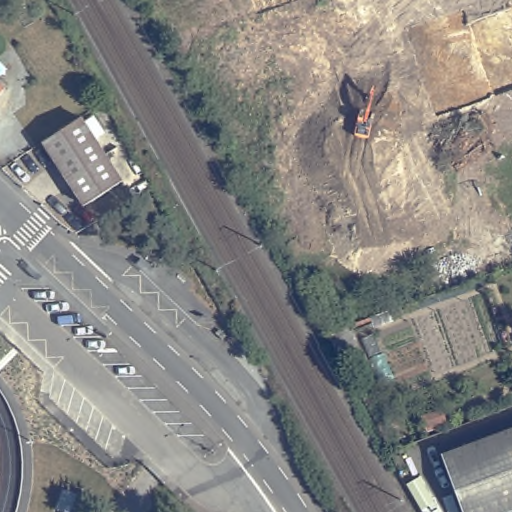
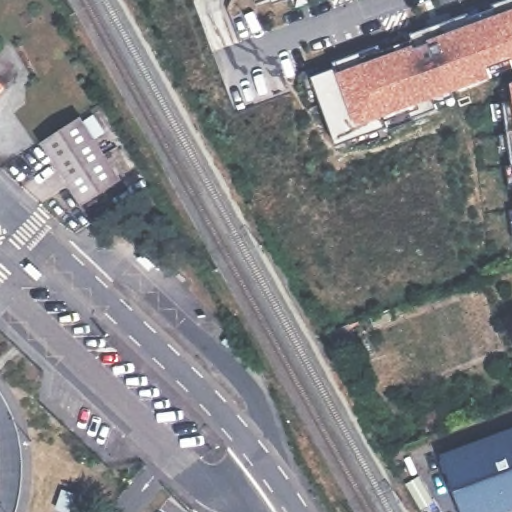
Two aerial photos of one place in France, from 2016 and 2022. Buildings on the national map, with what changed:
new [(258,2),(258,0),(265,0),(258,2)]
new [(276,2),(275,0),(282,0),(276,2)]
new [(321,95),(311,99),(302,72),(318,67),(318,72),(337,65),(334,60),(506,0),(512,0),(512,71),(496,77),(453,91),(455,96),(437,103),(438,109),(337,144),(321,95)]
unchanged [(0,103),(0,83),(10,92),(0,103)]
new [(507,100),(507,86),(512,83),(512,144),(507,100)]
unchanged [(84,204),(42,141),(80,116),(121,180),(84,204)]
demolished [(451,273),(438,278),(433,263),(462,252),(469,272),(452,278),(451,273)]
unchanged [(388,310),(392,320),(373,327),(370,317),(388,310)]
unchanged [(332,331),(352,324),(356,333),(348,335),(362,359),(353,365),(332,331)]
unchanged [(377,353),(366,357),(360,339),(371,335),(377,353)]
unchanged [(446,421),(426,427),(422,415),(442,409),(446,421)]
unchanged [(466,512),(447,459),(512,435),(512,512),(466,512)]

